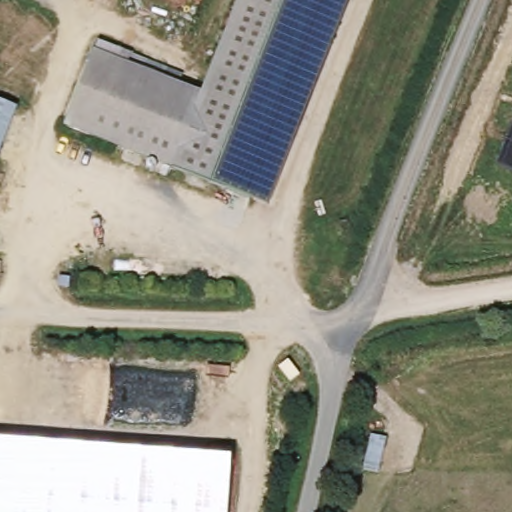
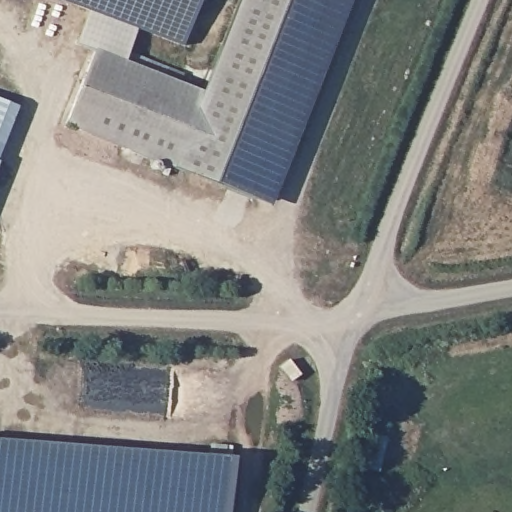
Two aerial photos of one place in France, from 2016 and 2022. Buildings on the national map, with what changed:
unchanged [(98,39),(124,49),(168,68),(166,77),(199,90),(236,0),(350,0),(269,206),(59,126),(98,39)]
new [(185,47),(64,0),(202,0),(185,47)]
unchanged [(18,107),(0,151),(0,100),(18,107)]
unchanged [(233,457),(228,512),(0,512),(0,440),(233,457)]

